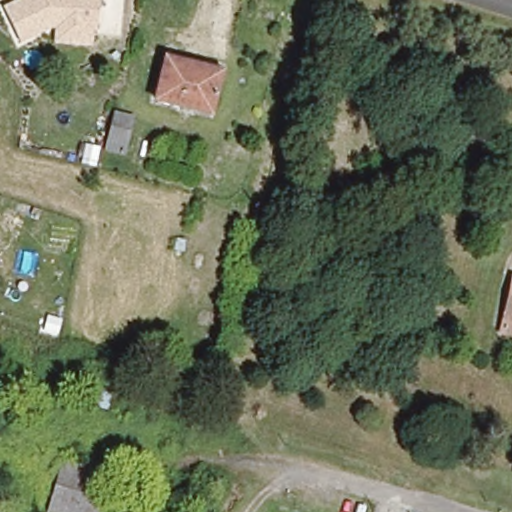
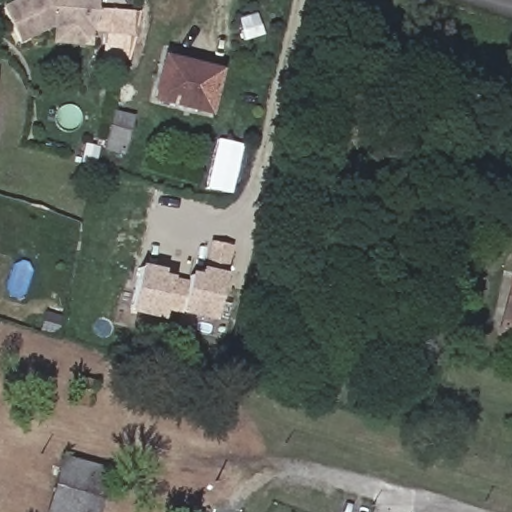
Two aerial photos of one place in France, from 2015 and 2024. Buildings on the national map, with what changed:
unchanged [(5,7),(20,0),(102,0),(97,48),(55,44),(54,29),(22,45),(5,7)]
unchanged [(171,54),(225,69),(215,109),(160,94),(171,54)]
unchanged [(129,151),(111,146),(121,110),(140,115),(129,151)]
new [(191,273),(201,276),(210,241),(231,246),(215,322),(166,312),(164,321),(130,313),(141,265),(165,271),(165,276),(189,281),(191,273)]
unchanged [(503,318),(511,277),(512,277),(512,320),(503,318)]
unchanged [(92,377),(86,400),(71,396),(78,372),(92,377)]
unchanged [(67,463),(115,476),(106,508),(92,505),(90,512),(53,512),(67,463)]

